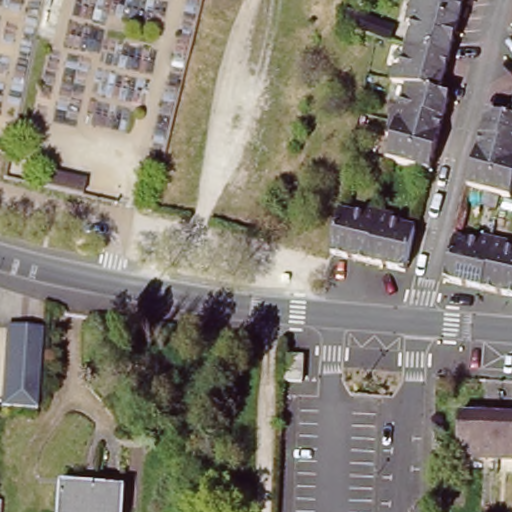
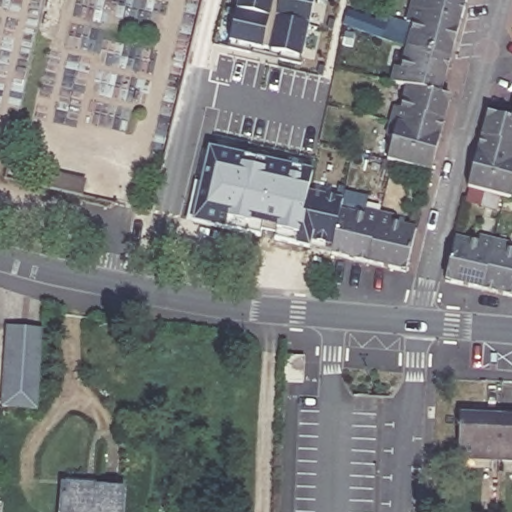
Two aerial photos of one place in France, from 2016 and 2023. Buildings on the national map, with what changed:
new [(223,45),(232,0),(316,0),(302,64),(223,45)]
unchanged [(410,7),(412,0),(464,0),(459,21),(410,7)]
unchanged [(449,57),(407,46),(413,24),(406,22),(410,7),(459,21),(449,57)]
unchanged [(449,57),(439,93),(407,85),(390,80),(395,65),(401,67),(407,46),(449,57)]
unchanged [(397,104),(402,105),(407,85),(439,93),(450,96),(440,131),(393,119),(397,104)]
unchanged [(487,110),(511,116),(512,116),(512,155),(477,146),(487,110)]
unchanged [(512,112),(512,116),(511,116),(512,112)]
unchanged [(440,131),(430,169),(391,159),(389,158),(395,135),(390,133),(393,119),(440,131)]
unchanged [(467,182),(477,146),(512,155),(512,188),(510,194),(505,192),(467,182)]
new [(332,252),(275,239),(275,234),(260,231),(259,236),(194,221),(210,151),(312,173),(307,193),(343,200),(345,191),(369,196),(365,209),(380,212),(367,263),(331,256),(341,209),(332,252)]
unchanged [(40,187),(44,173),(74,180),(84,182),(81,197),(71,194),(40,187)]
demolished [(341,209),(364,214),(365,209),(380,212),(367,263),(331,256),(341,209)]
unchanged [(380,212),(395,215),(394,221),(417,226),(407,271),(367,263),(380,212)]
unchanged [(479,287),(440,280),(450,235),(475,239),(477,232),(490,236),(479,287)]
unchanged [(490,236),(505,240),(505,247),(512,248),(512,295),(479,287),(490,236)]
unchanged [(5,321),(42,323),(36,404),(0,402),(5,321)]
unchanged [(302,357),(301,383),(284,382),(285,356),(302,357)]
unchanged [(475,412),(512,414),(512,459),(453,457),(455,416),(474,417),(475,412)]
unchanged [(94,493),(122,496),(120,512),(61,512),(64,485),(94,486),(94,493)]

